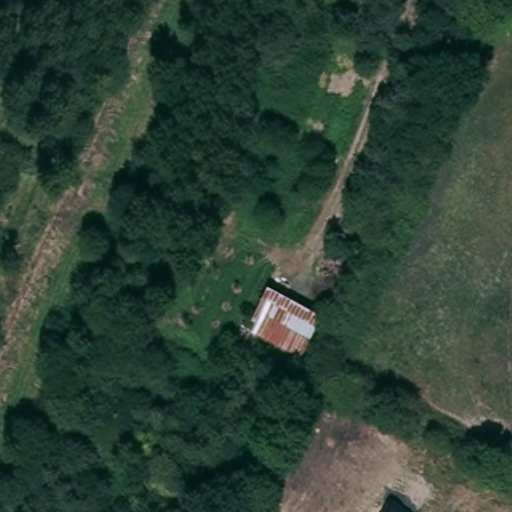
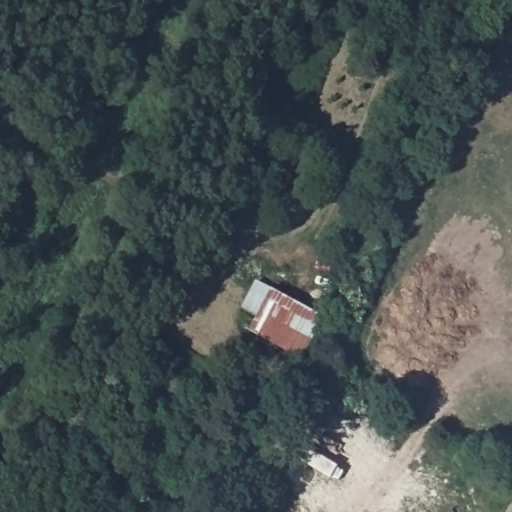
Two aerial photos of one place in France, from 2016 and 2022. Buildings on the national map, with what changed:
unchanged [(322,318),(298,361),(244,332),(266,288),(322,318)]

